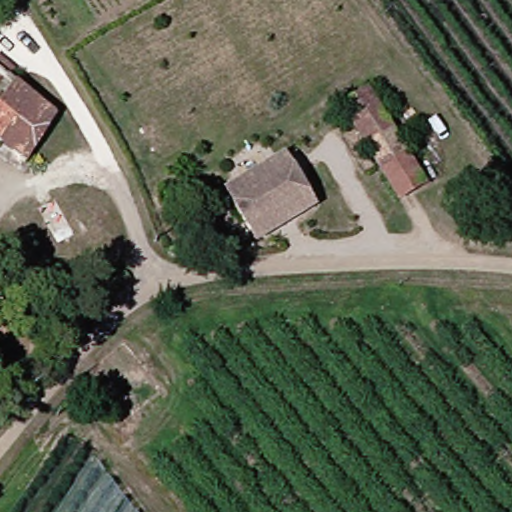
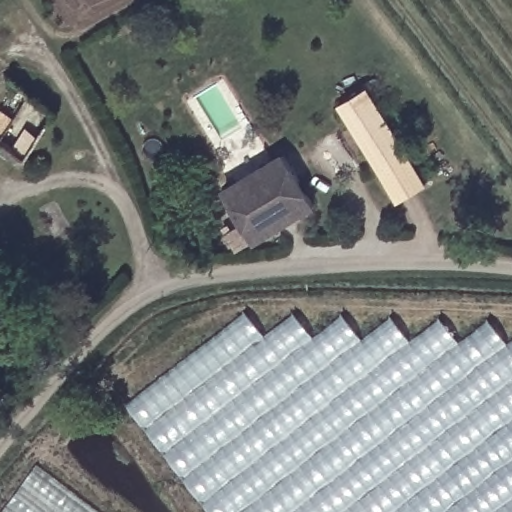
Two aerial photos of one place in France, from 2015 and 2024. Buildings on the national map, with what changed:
unchanged [(33,95),(60,116),(29,163),(0,141),(0,121),(26,85),(33,95)]
unchanged [(377,91),(395,120),(411,147),(382,164),(350,107),(377,91)]
unchanged [(411,147),(432,184),(402,200),(382,164),(411,147)]
unchanged [(289,157),(317,207),(263,244),(234,195),(289,157)]
demolished [(132,248),(99,266),(80,231),(60,241),(39,205),(59,196),(63,204),(100,183),(132,248)]
new [(266,336),(296,315),(315,337),(345,316),(363,340),(393,318),(411,341),(441,320),(460,342),(489,321),(508,344),(512,341),(512,512),(210,512),(127,406),(246,313),(266,336)]
demolished [(127,341),(167,390),(134,418),(95,370),(127,341)]
new [(103,512),(6,512),(40,465),(103,512)]

